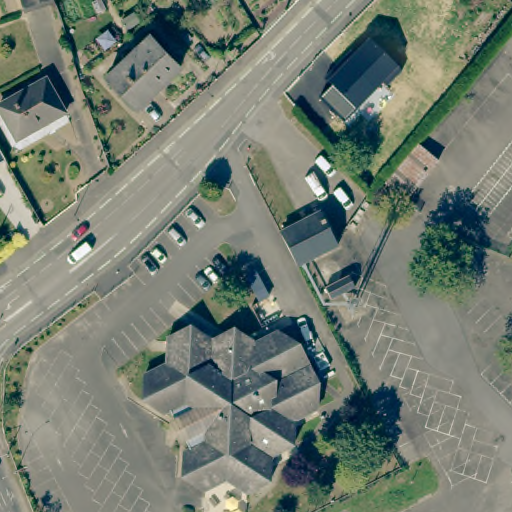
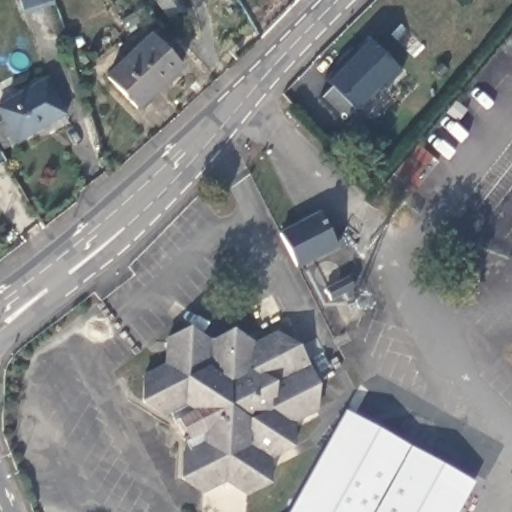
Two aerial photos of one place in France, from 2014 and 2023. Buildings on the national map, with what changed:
unchanged [(17,0),(49,0),(51,5),(22,16),(17,0)]
unchanged [(110,72),(154,32),(182,62),(138,102),(110,72)]
new [(319,97),(335,83),(331,75),(376,36),(404,66),(358,110),(345,125),(319,97)]
demolished [(324,65),(343,49),(368,77),(349,95),(324,65)]
unchanged [(2,102),(50,78),(66,110),(19,135),(2,102)]
unchanged [(383,187),(413,151),(431,166),(400,202),(383,187)]
unchanged [(277,232),(316,212),(333,246),(295,267),(277,232)]
unchanged [(187,441),(182,431),(186,428),(179,415),(176,417),(170,406),(165,407),(162,409),(141,394),(145,369),(165,359),(167,332),(189,322),(211,336),(234,325),(255,338),(277,327),(300,340),(317,377),(314,403),(293,416),(291,441),(270,453),(267,476),(245,487),(225,476),(205,485),(202,486),(181,470),(184,444),(187,441)]
new [(476,478),(457,512),(291,512),(347,412),(476,478)]

